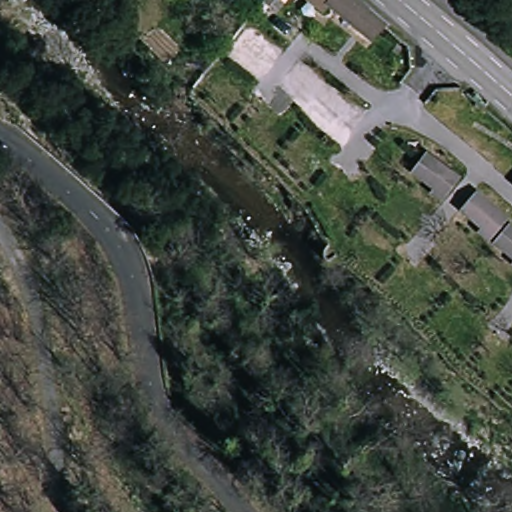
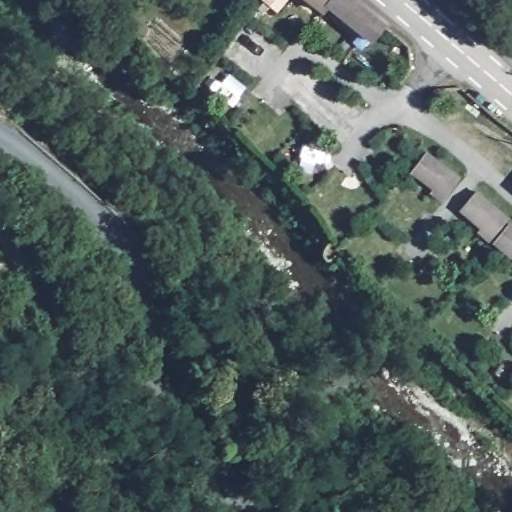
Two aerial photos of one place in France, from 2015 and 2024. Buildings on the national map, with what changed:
unchanged [(262,0),(281,0),(274,9),(262,0)]
unchanged [(371,43),(329,7),(324,13),(309,0),(356,0),(386,25),(371,43)]
unchanged [(422,155),(459,177),(441,198),(407,177),(422,155)]
unchanged [(472,193),(512,224),(512,263),(476,235),(479,228),(459,208),(472,193)]

